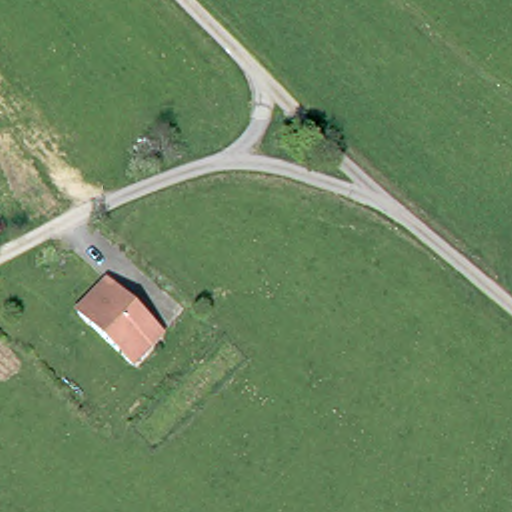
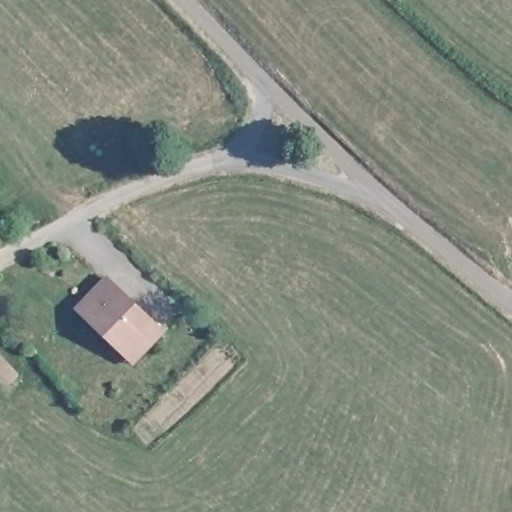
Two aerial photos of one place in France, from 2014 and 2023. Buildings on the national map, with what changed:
unchanged [(127,360),(73,312),(102,279),(156,328),(127,360)]

